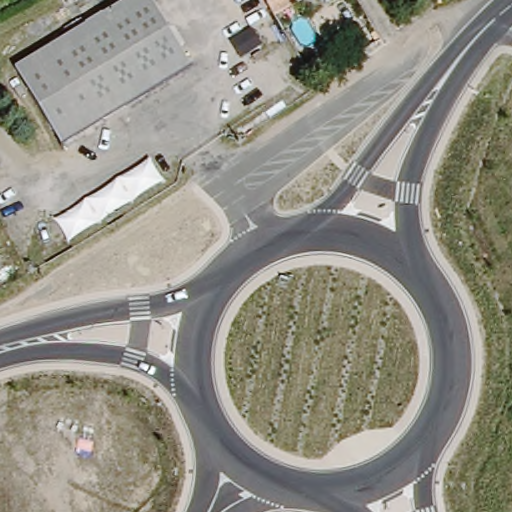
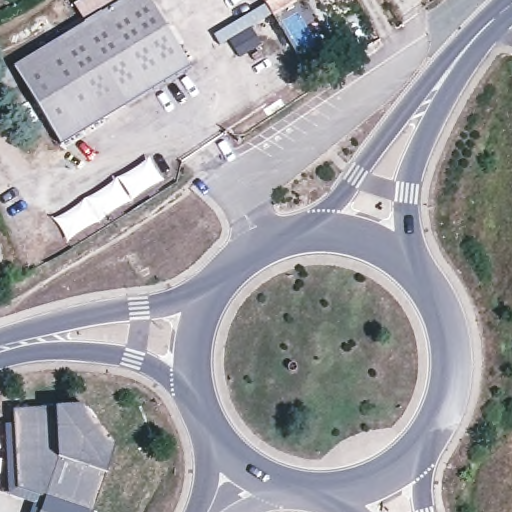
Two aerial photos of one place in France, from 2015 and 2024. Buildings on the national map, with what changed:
unchanged [(58,145),(13,69),(128,0),(148,0),(188,68),(58,145)]
unchanged [(276,18),(264,0),(299,0),(300,3),(276,18)]
new [(18,489),(13,413),(57,407),(85,406),(116,445),(106,475),(93,512),(40,512),(45,498),(18,489)]

